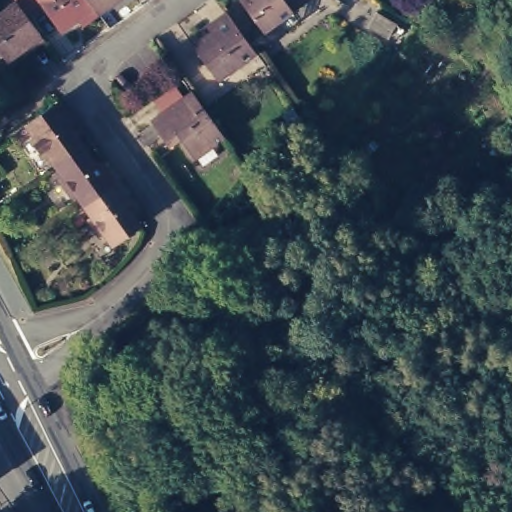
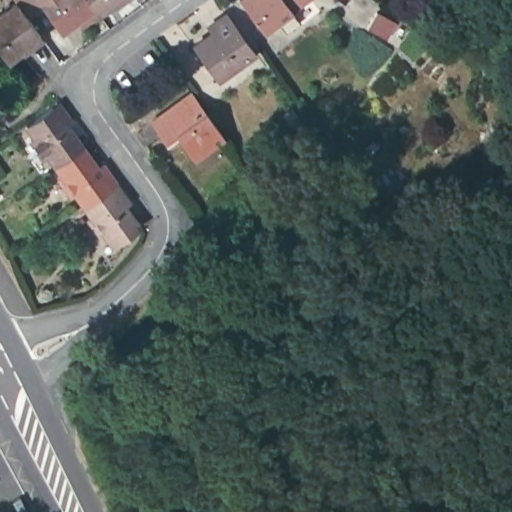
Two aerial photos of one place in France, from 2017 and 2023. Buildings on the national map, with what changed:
unchanged [(41,41),(17,6),(0,19),(0,11),(14,1),(13,0),(17,0),(44,37),(41,41)]
unchanged [(40,3),(37,0),(43,0),(44,1),(40,3)]
unchanged [(80,21),(62,34),(40,3),(44,1),(43,0),(85,0),(98,17),(84,28),(80,21)]
unchanged [(85,0),(123,0),(98,17),(85,0)]
unchanged [(301,22),(287,32),(279,21),(265,32),(241,0),(308,0),(293,11),(301,22)]
unchanged [(0,50),(0,19),(17,6),(41,41),(10,63),(0,50)]
unchanged [(378,12),(396,24),(387,38),(369,26),(378,12)]
unchanged [(217,85),(193,51),(212,38),(207,32),(227,17),(256,56),(217,85)]
unchanged [(195,162),(179,138),(167,147),(154,126),(188,101),(194,97),(207,117),(224,141),(195,162)]
unchanged [(56,159),(48,148),(44,151),(31,132),(35,129),(27,119),(53,100),(82,140),(56,159)]
unchanged [(85,200),(77,189),(73,192),(59,173),(64,170),(56,159),(82,140),(111,181),(85,200)]
unchanged [(140,221),(114,240),(106,229),(102,232),(89,214),(92,211),(85,200),(111,181),(140,221)]

